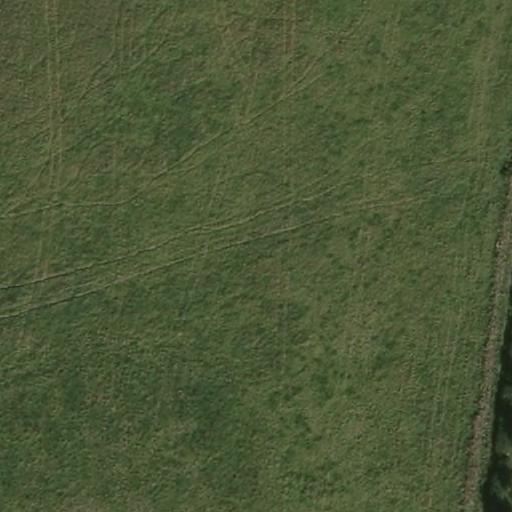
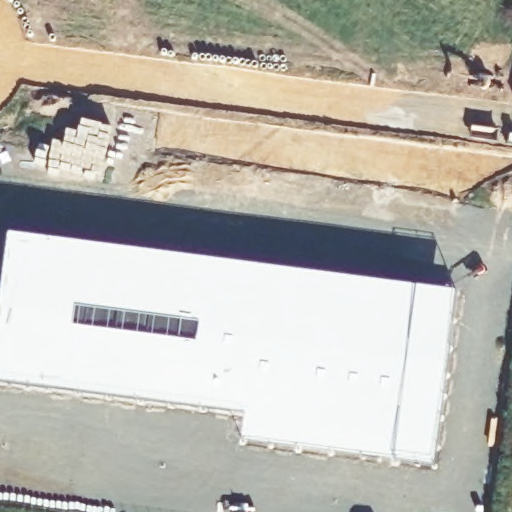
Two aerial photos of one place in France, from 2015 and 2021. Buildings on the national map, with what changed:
new [(459,292),(437,467),(244,443),(246,417),(0,385),(0,317),(10,235),(459,292)]

